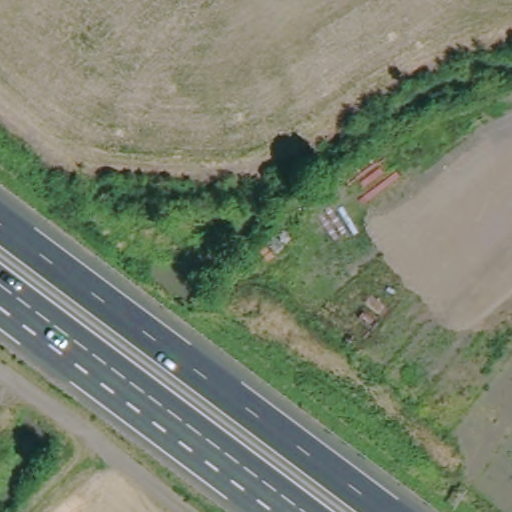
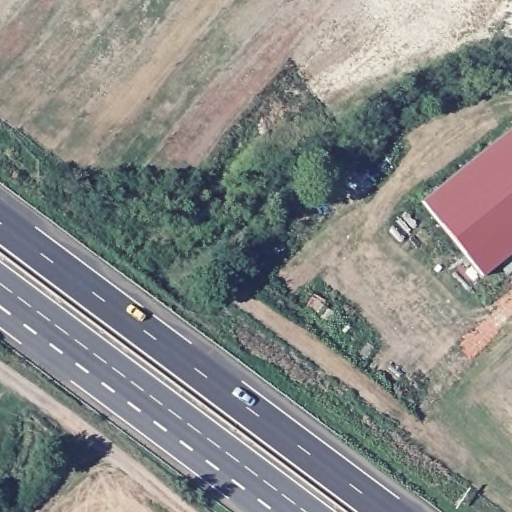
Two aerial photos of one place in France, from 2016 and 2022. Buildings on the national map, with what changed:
new [(480,278),(420,201),(512,128),(512,251),(480,278)]

